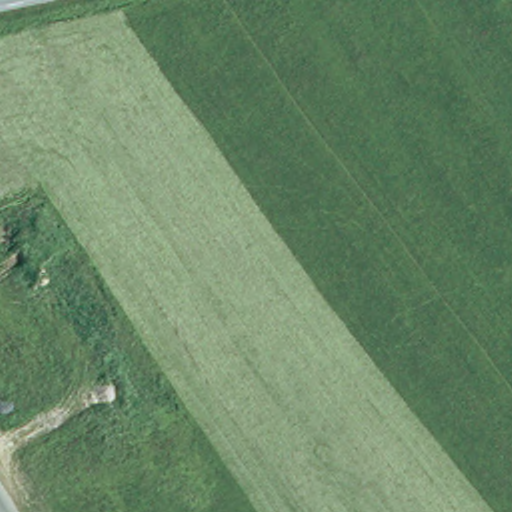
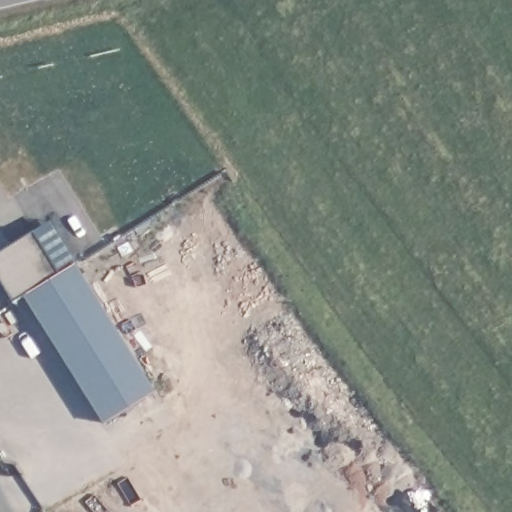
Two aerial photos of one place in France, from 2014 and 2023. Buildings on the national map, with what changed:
new [(61,274),(78,264),(158,391),(107,423),(26,294),(15,301),(0,277),(0,253),(35,231),(61,274)]

